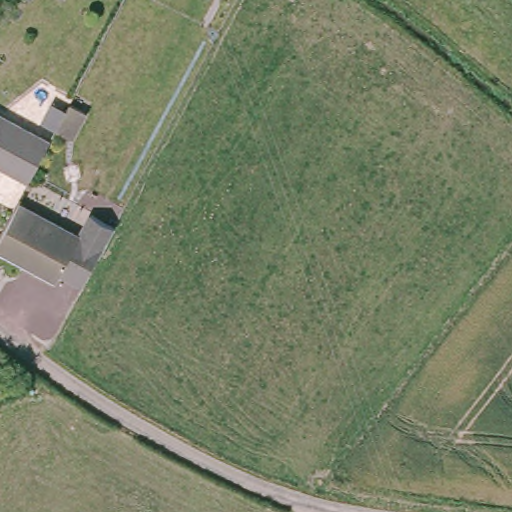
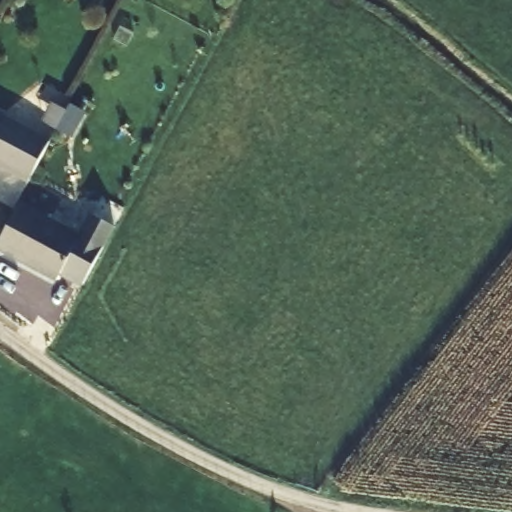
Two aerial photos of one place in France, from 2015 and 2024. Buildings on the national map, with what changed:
unchanged [(45,144),(23,185),(7,177),(9,174),(0,169),(0,120),(45,144)]
unchanged [(27,233),(32,223),(78,247),(39,319),(26,313),(46,275),(9,255),(2,266),(0,265),(0,247),(11,226),(27,233)]

